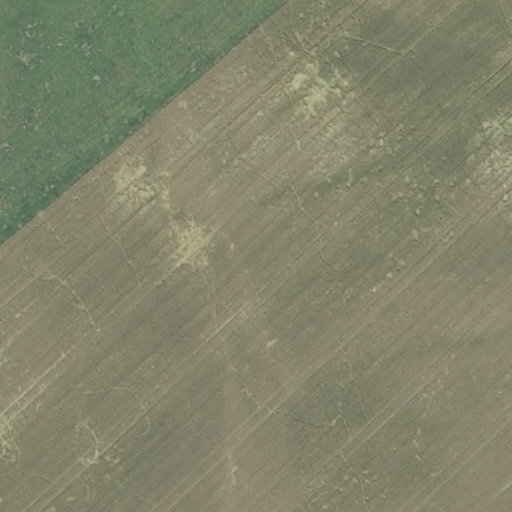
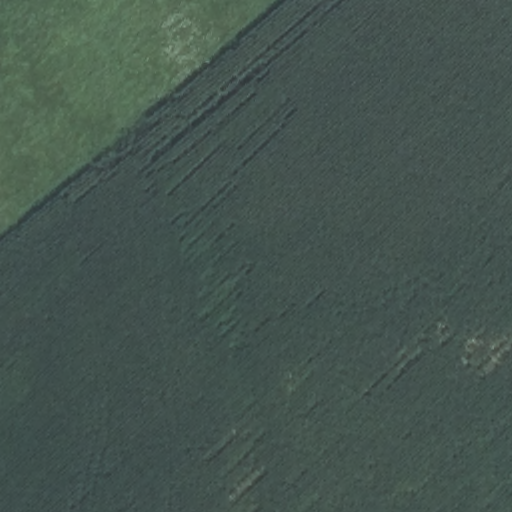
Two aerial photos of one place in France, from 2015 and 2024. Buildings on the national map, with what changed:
[]

